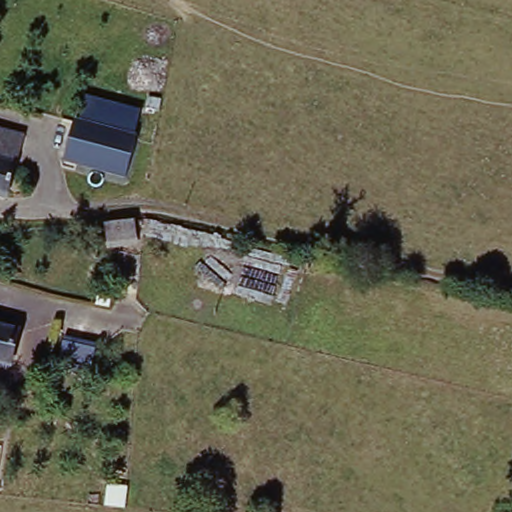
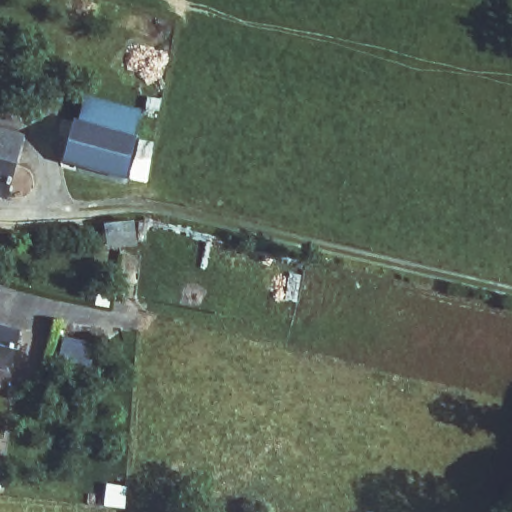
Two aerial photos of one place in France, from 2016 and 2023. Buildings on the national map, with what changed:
unchanged [(139,134),(130,172),(69,155),(80,117),(139,134)]
unchanged [(11,199),(0,196),(0,130),(28,137),(11,199)]
unchanged [(133,221),(136,239),(105,242),(102,225),(133,221)]
unchanged [(12,361),(0,359),(0,322),(21,327),(12,361)]
unchanged [(109,492),(121,493),(119,508),(106,507),(109,492)]

